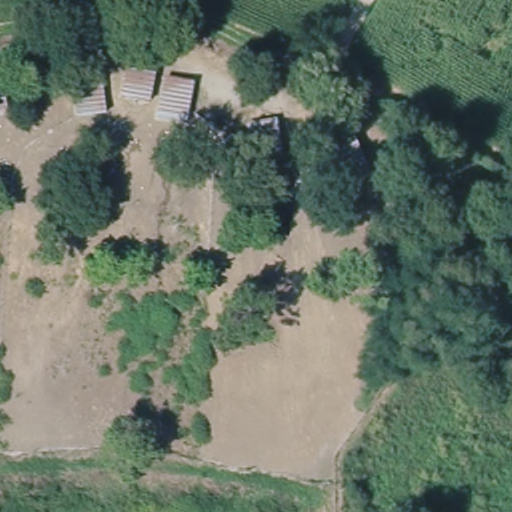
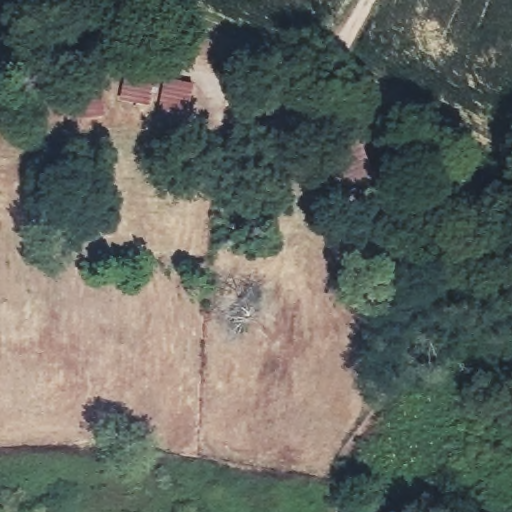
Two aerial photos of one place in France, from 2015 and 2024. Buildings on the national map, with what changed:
unchanged [(184,129),(148,121),(150,113),(113,101),(120,64),(194,82),(184,129)]
unchanged [(7,116),(0,117),(0,66),(7,116)]
unchanged [(105,118),(72,120),(66,72),(100,68),(105,118)]
unchanged [(279,170),(246,172),(239,124),(272,120),(279,170)]
unchanged [(376,180),(343,189),(321,139),(332,126),(353,130),(376,180)]

